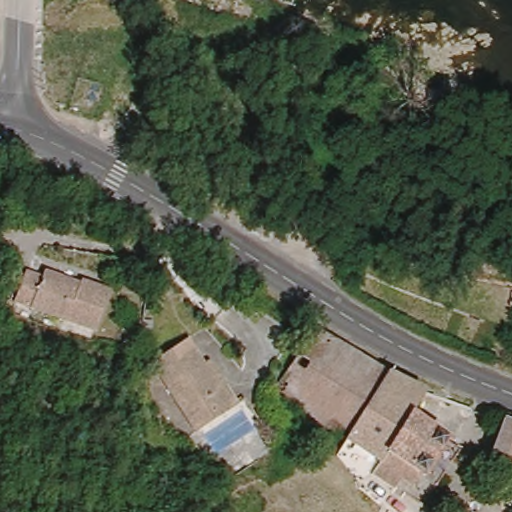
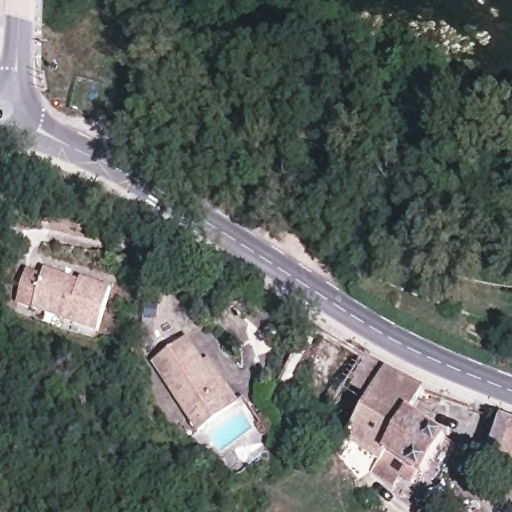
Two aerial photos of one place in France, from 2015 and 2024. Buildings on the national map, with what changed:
unchanged [(201,101),(203,100),(206,98),(211,98),(214,100),(217,102),(218,106),(213,126),(195,121),(201,101)]
unchanged [(32,277),(34,270),(66,282),(69,276),(106,290),(91,328),(8,297),(18,271),(32,277)]
unchanged [(442,465),(435,475),(387,444),(384,448),(278,386),(313,323),(323,329),(356,349),(392,368),(427,386),(414,407),(459,439),(450,453),(442,465)]
unchanged [(200,430),(148,364),(178,337),(216,386),(223,381),(237,399),(200,430)]
unchanged [(477,461),(491,420),(512,429),(512,472),(502,469),(495,467),(477,461)]
unchanged [(401,463),(394,473),(376,461),(382,452),(401,463)]
unchanged [(475,512),(457,512),(473,505),(475,512)]

